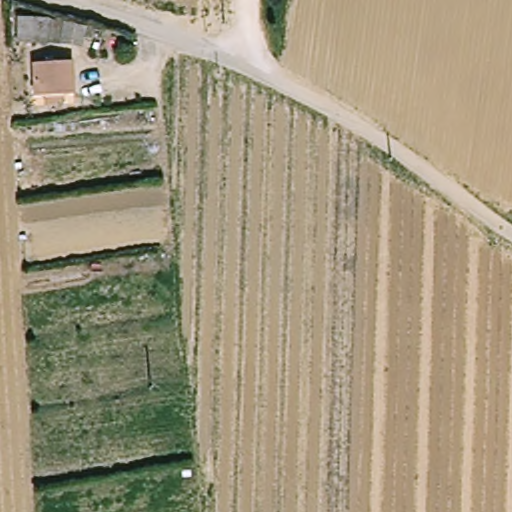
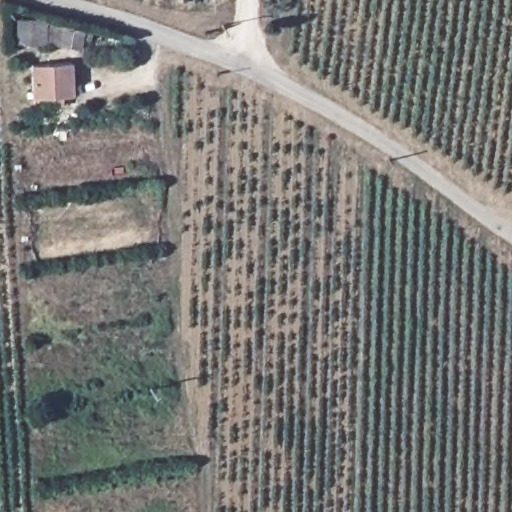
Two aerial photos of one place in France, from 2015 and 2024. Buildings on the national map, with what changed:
unchanged [(16,46),(18,20),(36,22),(36,18),(52,20),(48,41),(34,40),(34,48),(16,46)]
unchanged [(90,33),(87,47),(64,44),(68,27),(90,33)]
unchanged [(73,98),(38,101),(35,66),(71,65),(73,98)]

